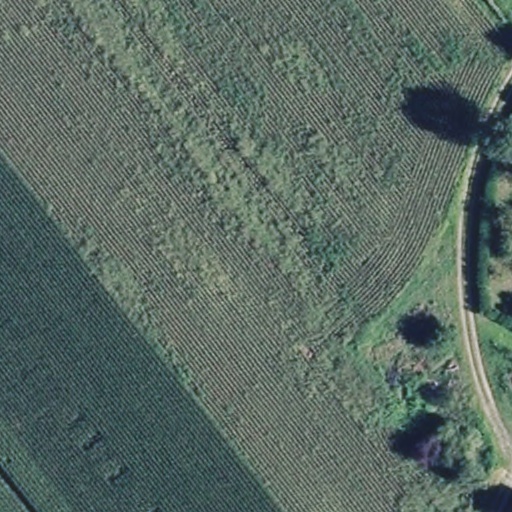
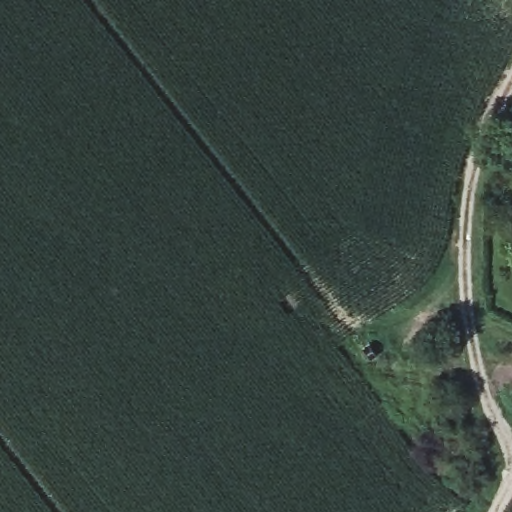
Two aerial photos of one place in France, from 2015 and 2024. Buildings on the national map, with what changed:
[]

